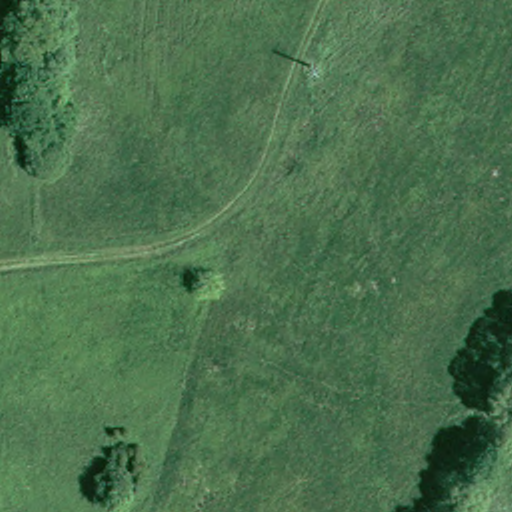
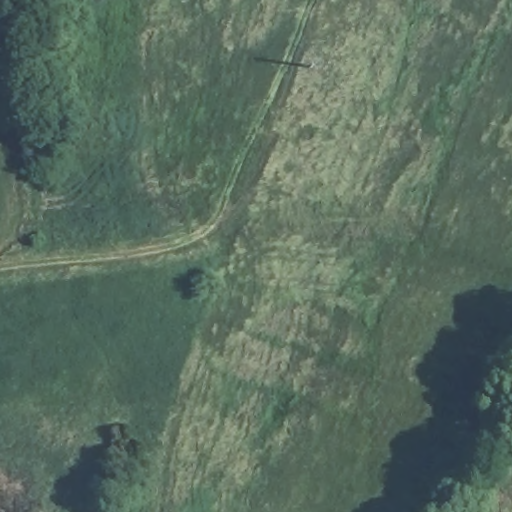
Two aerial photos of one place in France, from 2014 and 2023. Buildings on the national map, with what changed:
[]

